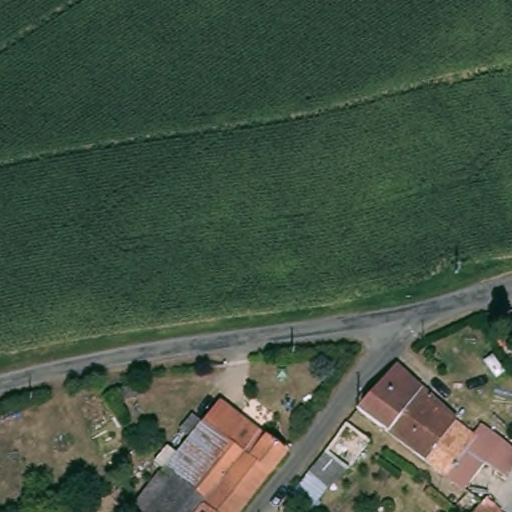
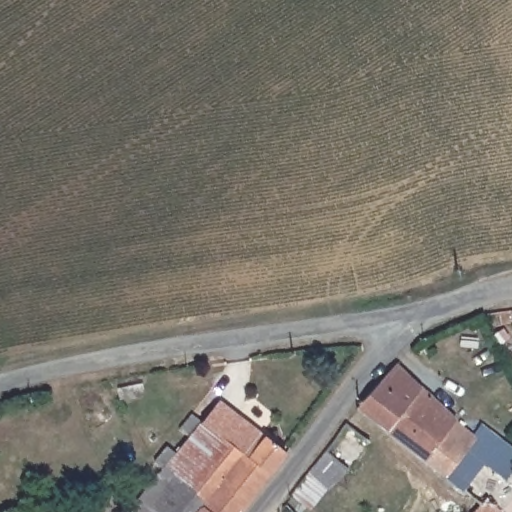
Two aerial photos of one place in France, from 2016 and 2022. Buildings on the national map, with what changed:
unchanged [(357,400),(393,355),(468,423),(475,415),(500,437),(481,457),(480,458),(479,460),(460,442),(438,466),(357,400)]
unchanged [(188,435),(179,428),(191,411),(200,418),(216,396),(284,450),(238,512),(206,512),(158,475),(188,435)]
unchanged [(369,446),(344,480),(336,473),(307,512),(297,512),(290,506),(346,428),(369,446)]
unchanged [(438,466),(460,442),(479,460),(480,458),(481,457),(500,437),(512,448),(512,458),(497,475),(479,497),(467,489),(438,466)]
unchanged [(206,512),(131,512),(158,475),(206,512)]
unchanged [(502,512),(477,512),(491,498),(502,512)]

